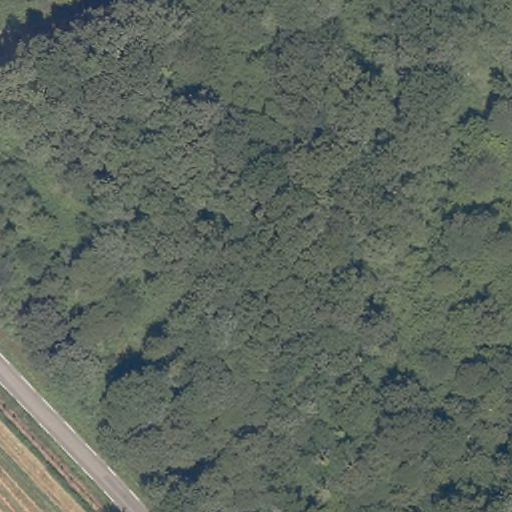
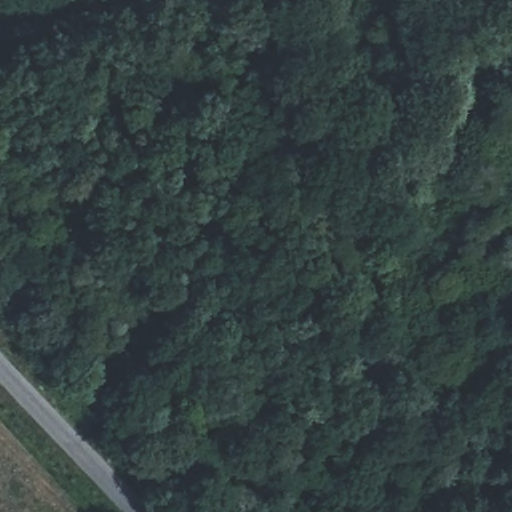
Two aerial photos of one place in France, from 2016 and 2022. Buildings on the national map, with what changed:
[]

